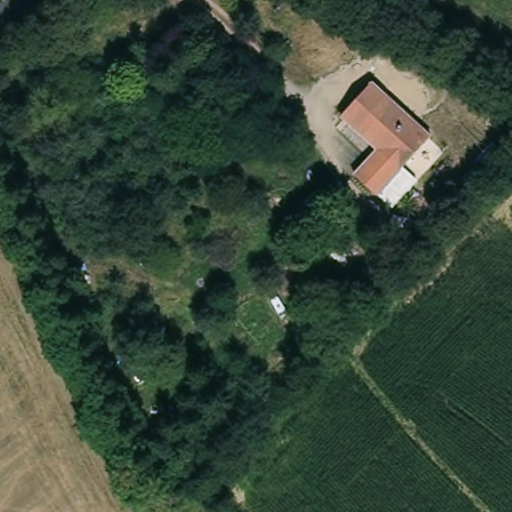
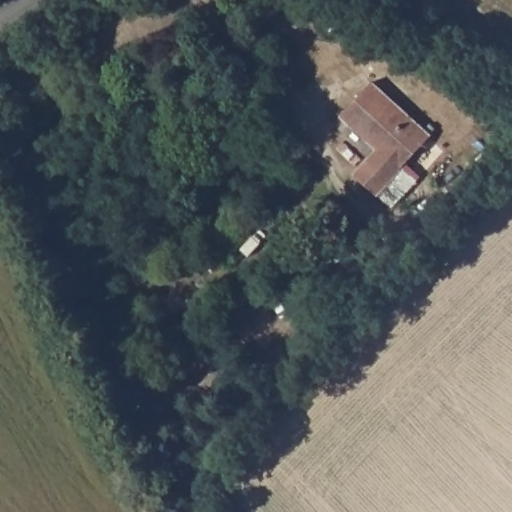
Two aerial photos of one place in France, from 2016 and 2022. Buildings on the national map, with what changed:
unchanged [(370,82),(430,133),(398,169),(382,188),(376,195),(355,177),(357,174),(377,151),(339,118),(370,82)]

